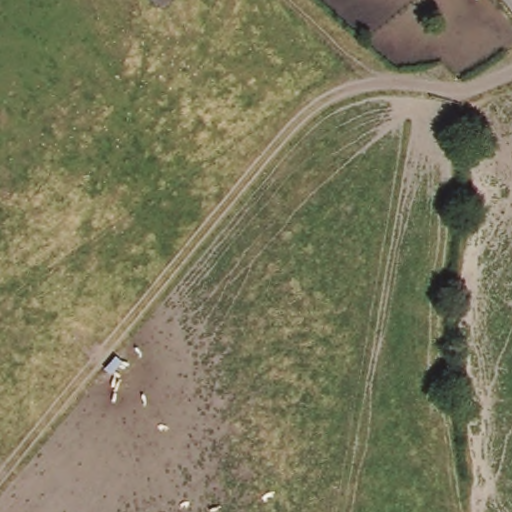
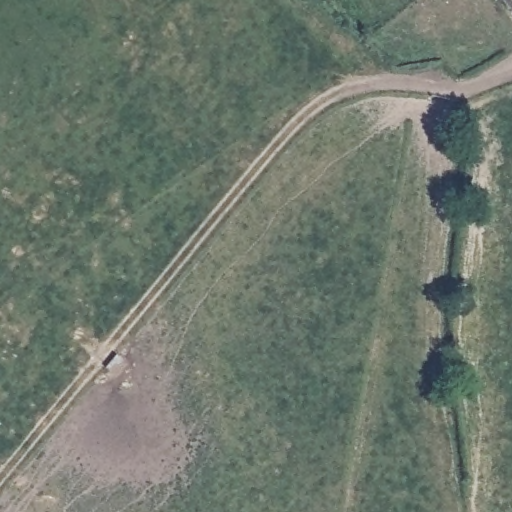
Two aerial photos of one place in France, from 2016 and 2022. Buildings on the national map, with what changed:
unchanged [(512,16),(500,0),(512,0),(512,16)]

